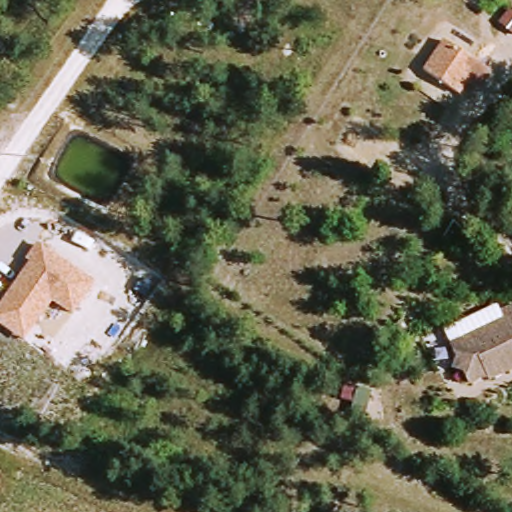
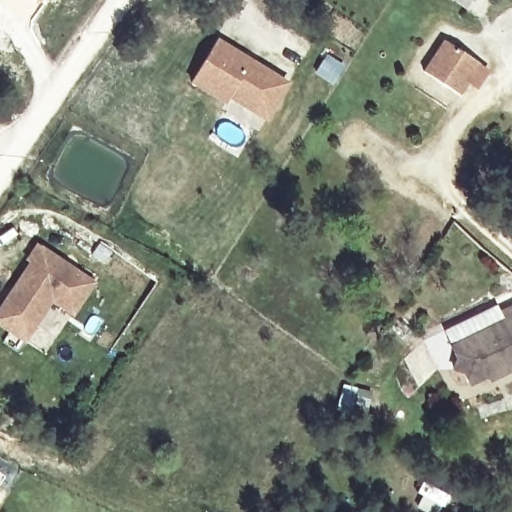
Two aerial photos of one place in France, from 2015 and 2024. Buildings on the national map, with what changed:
new [(36,0),(41,0),(40,2),(36,0)]
unchanged [(512,7),(512,21),(505,15),(512,7)]
new [(218,39),(290,83),(266,122),(229,100),(225,105),(191,84),(218,39)]
unchanged [(441,40),(488,69),(476,88),(465,84),(460,94),(423,67),(441,40)]
unchanged [(26,265),(22,262),(37,241),(96,281),(73,317),(52,303),(26,342),(0,325),(0,304),(26,265)]
unchanged [(475,389),(458,351),(455,345),(446,326),(502,302),(506,311),(512,309),(512,379),(496,386),(493,381),(475,389)]

